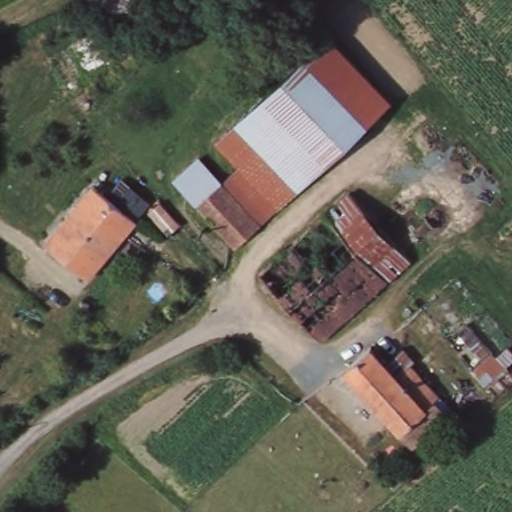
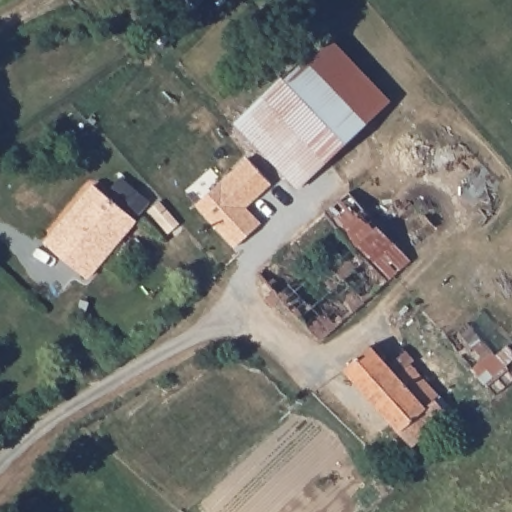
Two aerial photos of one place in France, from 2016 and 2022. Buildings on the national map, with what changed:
unchanged [(298,191),(263,227),(260,223),(223,180),(235,169),(213,144),(318,38),(327,29),(384,101),(376,110),(298,191)]
unchanged [(223,180),(260,223),(233,248),(196,203),(223,180)]
unchanged [(90,278),(49,243),(98,186),(138,221),(90,278)]
unchanged [(408,262),(319,340),(259,270),(349,191),(408,262)]
unchanged [(343,368),(371,346),(398,376),(420,356),(446,389),(432,401),(438,410),(443,416),(409,447),(405,441),(343,368)]
unchanged [(512,382),(505,388),(483,360),(493,352),(512,378),(512,382)]

